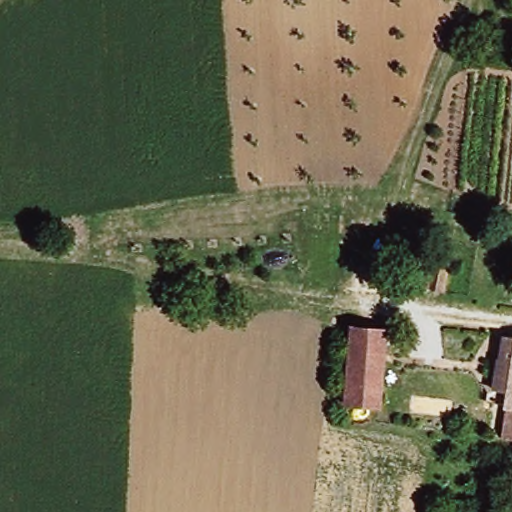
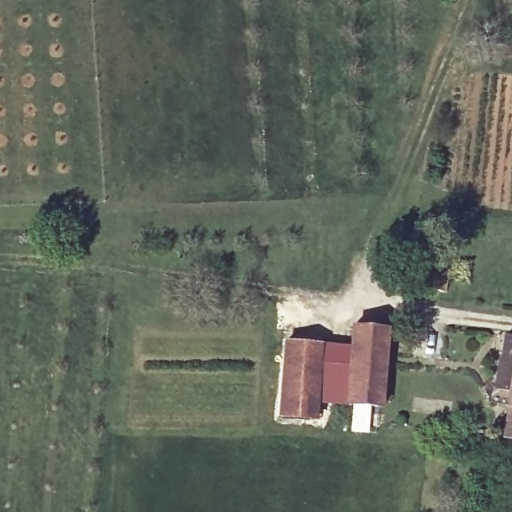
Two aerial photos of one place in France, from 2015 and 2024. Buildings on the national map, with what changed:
unchanged [(453,295),(435,293),(442,263),(458,266),(453,295)]
unchanged [(390,337),(383,408),(347,404),(355,333),(390,337)]
unchanged [(500,362),(505,333),(512,334),(512,364),(500,362)]
new [(279,417),(284,341),(353,347),(347,404),(318,402),(317,419),(279,417)]
unchanged [(512,367),(512,442),(500,440),(512,367)]

